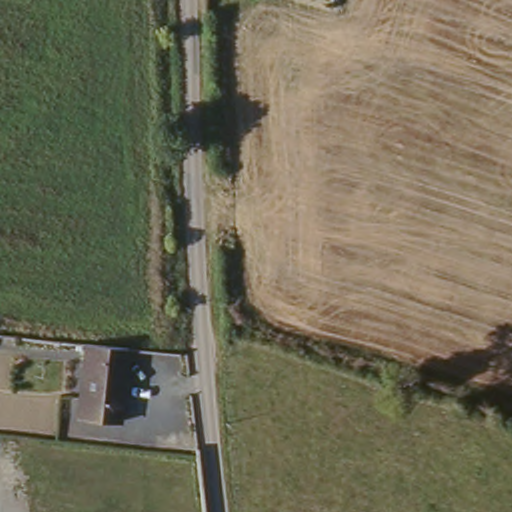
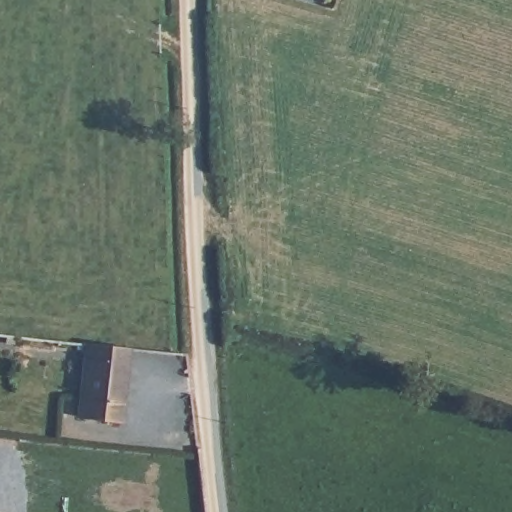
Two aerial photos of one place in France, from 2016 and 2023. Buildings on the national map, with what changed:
unchanged [(113,419),(69,416),(77,344),(119,347),(113,419)]

